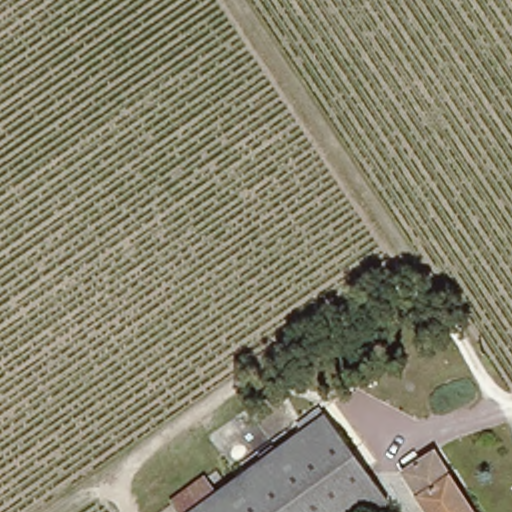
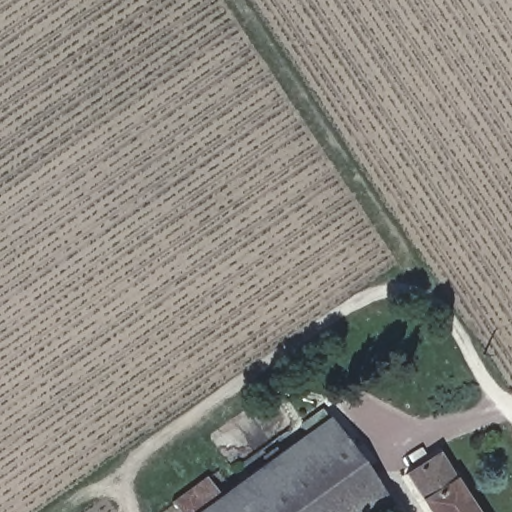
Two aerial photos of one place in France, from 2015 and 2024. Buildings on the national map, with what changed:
unchanged [(325,417),(389,503),(377,512),(198,512),(325,417)]
unchanged [(465,512),(423,512),(403,481),(433,461),(465,512)]

